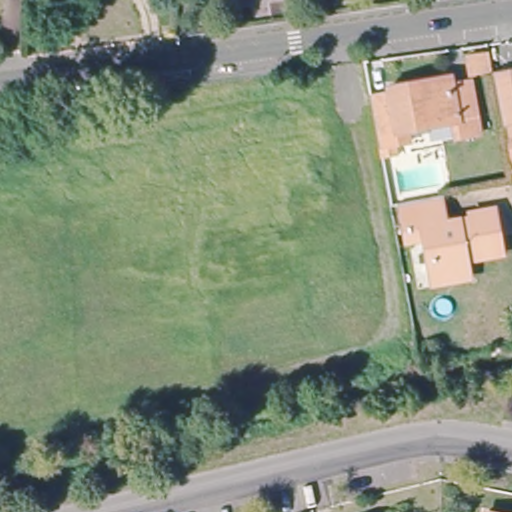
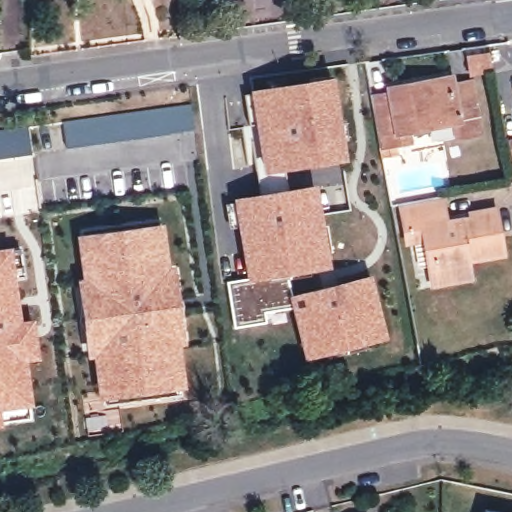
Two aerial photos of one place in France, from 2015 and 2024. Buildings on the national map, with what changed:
unchanged [(485,59),(488,77),(468,80),(465,61),(485,59)]
new [(332,75),(347,160),(266,174),(251,91),(332,75)]
unchanged [(462,146),(459,130),(411,139),(413,151),(381,156),(372,102),(392,99),(392,95),(451,85),(452,91),(471,87),(477,116),(482,143),(462,146)]
new [(196,130),(69,148),(64,121),(191,102),(196,130)]
new [(32,156),(0,160),(0,129),(27,125),(32,156)]
new [(332,266),(290,272),(293,293),(371,275),(388,338),(305,360),(293,305),(265,311),(266,320),(236,325),(229,283),(247,280),(234,199),(318,185),(332,266)]
unchanged [(435,285),(432,272),(426,240),(408,243),(406,231),(401,204),(443,196),(447,218),(471,214),(495,209),(502,252),(468,260),(470,265),(473,278),(435,285)]
new [(171,266),(177,265),(187,345),(180,346),(186,388),(99,400),(94,358),(89,359),(77,280),(82,278),(77,234),(164,222),(171,266)]
new [(22,320),(34,319),(39,360),(27,361),(32,406),(1,411),(2,426),(0,427),(0,249),(12,247),(22,320)]
unchanged [(485,512),(486,510),(492,512),(485,512)]

